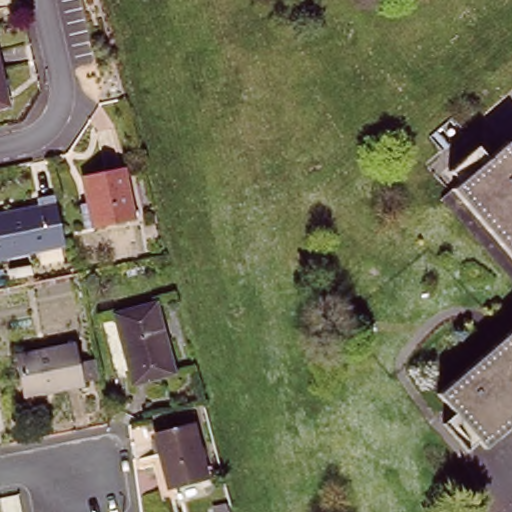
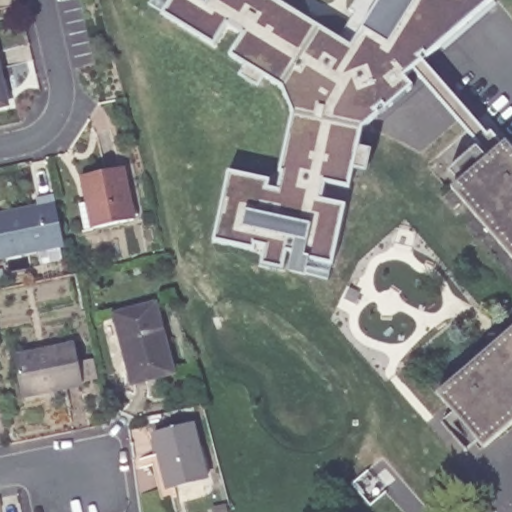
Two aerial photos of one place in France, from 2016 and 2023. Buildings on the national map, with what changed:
new [(421,60),(503,148),(492,158),(408,70),(402,74),(411,86),(361,127),(356,146),(370,149),(365,171),(350,169),(346,186),(322,181),(320,200),(345,205),(331,264),(328,263),(326,280),(305,275),(288,272),(291,251),(283,250),(280,267),(260,264),(264,247),(251,244),(251,248),(213,240),(228,170),(270,180),(268,187),(280,188),(294,111),(282,86),(263,73),(256,85),(235,75),(243,62),(230,54),(241,33),(225,23),(215,43),(163,12),(169,0),(275,0),(335,34),(355,0),(491,0),(421,60)]
unchanged [(0,106),(0,69),(8,104),(0,106)]
unchanged [(503,148),(512,158),(512,267),(450,195),(503,148)]
unchanged [(94,228),(83,175),(125,167),(136,219),(94,228)]
unchanged [(0,256),(0,214),(11,212),(12,215),(39,209),(37,199),(55,196),(65,243),(0,256)]
unchanged [(133,381),(116,313),(156,303),(175,372),(133,381)]
unchanged [(435,400),(512,332),(512,428),(482,453),(435,400)]
unchanged [(20,400),(12,360),(69,348),(77,388),(20,400)]
unchanged [(167,487),(154,433),(193,424),(207,476),(167,487)]

